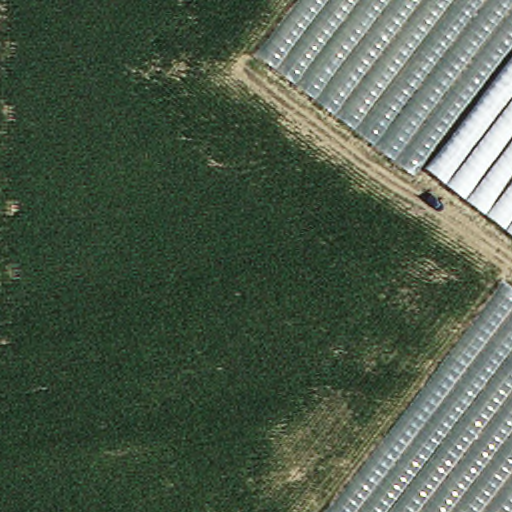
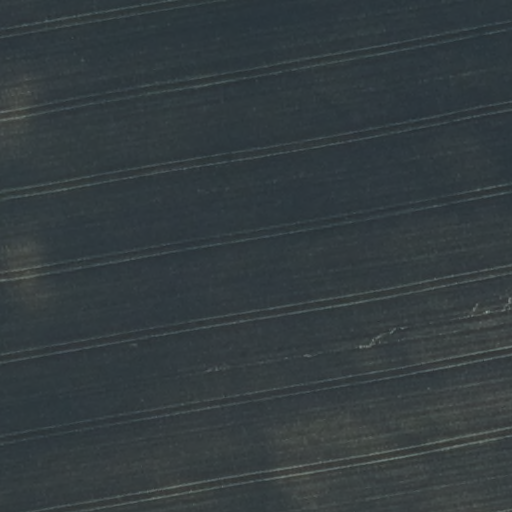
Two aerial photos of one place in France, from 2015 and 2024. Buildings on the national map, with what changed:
demolished [(512,230),(426,165),(418,174),(264,56),(306,0),(512,0),(512,230)]
demolished [(512,287),(512,512),(331,512),(507,283),(512,287)]

